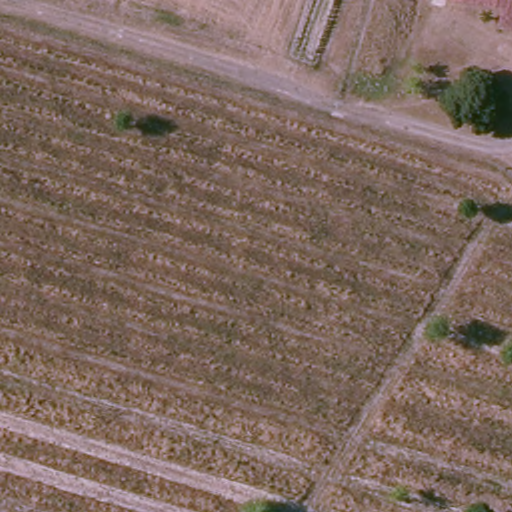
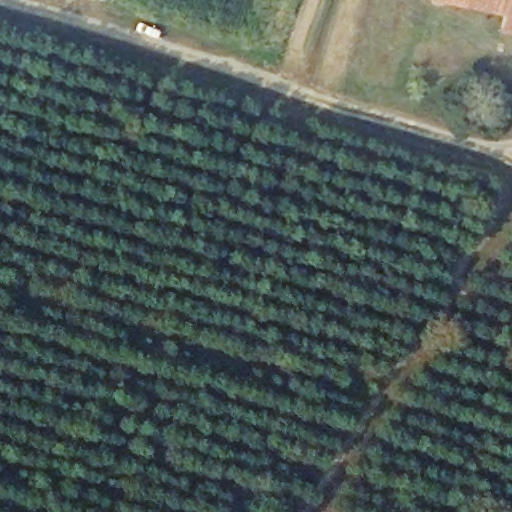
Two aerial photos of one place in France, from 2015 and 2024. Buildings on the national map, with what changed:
unchanged [(499,22),(504,5),(486,0),(512,0),(512,26),(499,22)]

